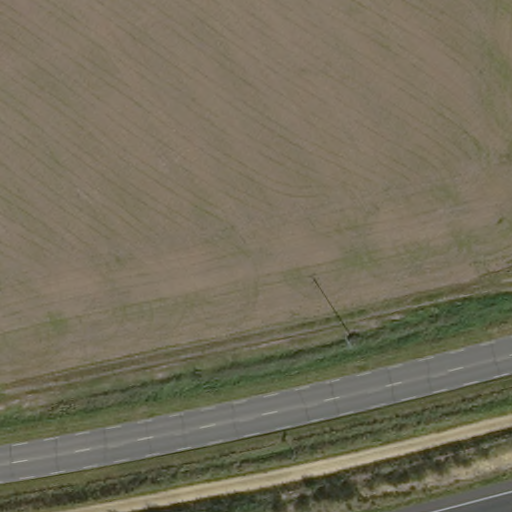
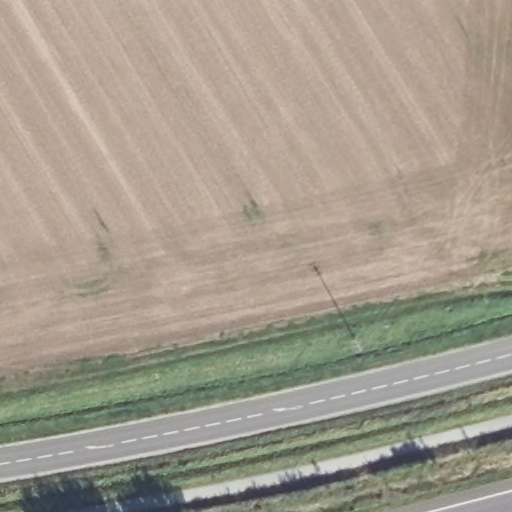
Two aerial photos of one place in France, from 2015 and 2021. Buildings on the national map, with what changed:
[]

